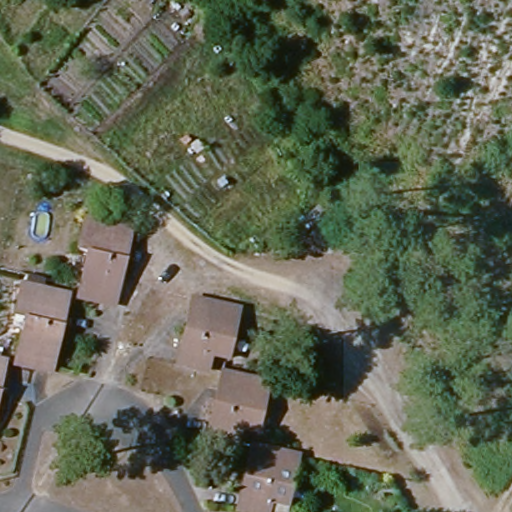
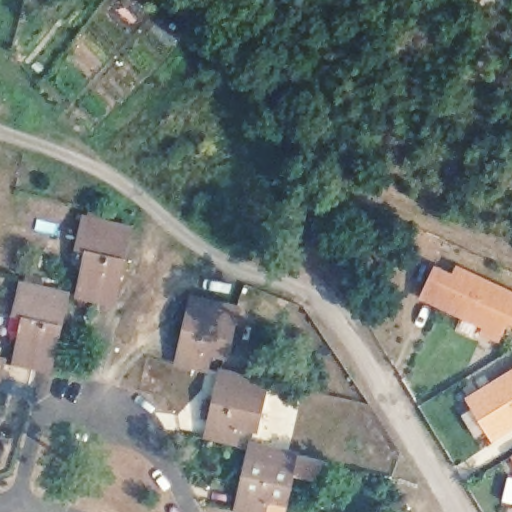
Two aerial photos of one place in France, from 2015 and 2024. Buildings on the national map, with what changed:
unchanged [(100,301),(79,296),(90,252),(80,250),(87,217),(131,227),(127,249),(124,260),(114,305),(100,301)]
new [(489,328),(425,300),(438,271),(456,279),(460,270),(512,294),(512,322),(509,320),(503,335),(489,328)]
unchanged [(43,367),(21,363),(32,317),(21,314),(27,284),(29,283),(51,288),(74,294),(69,313),(66,325),(56,371),(43,367)]
unchanged [(238,309),(227,358),(209,355),(206,370),(178,365),(185,331),(189,316),(193,298),(238,309)]
unchanged [(3,379),(0,388),(0,360),(6,361),(3,379)]
unchanged [(268,383),(256,432),(238,428),(235,443),(209,438),(215,405),(219,391),(222,374),(268,383)]
new [(512,376),(512,429),(494,440),(471,401),(512,376)]
unchanged [(287,511),(269,507),(268,512),(237,512),(244,483),(247,468),(251,452),(298,461),(287,511)]

